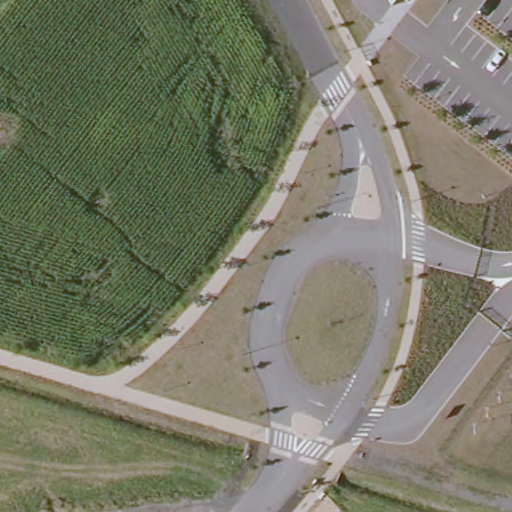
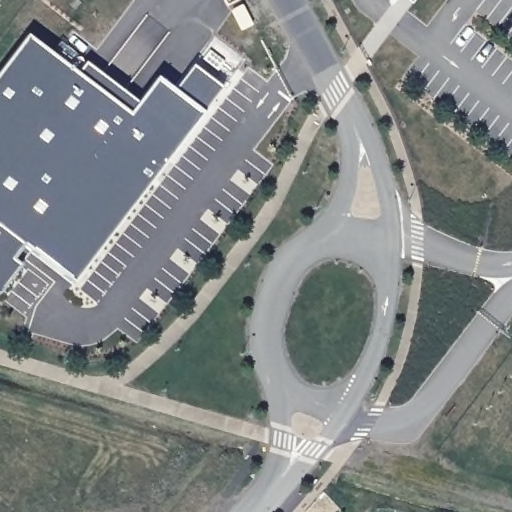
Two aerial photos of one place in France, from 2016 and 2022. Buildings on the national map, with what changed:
unchanged [(388,0),(391,0),(390,2),(388,0)]
unchanged [(406,0),(411,0),(410,2),(406,0)]
new [(0,227),(0,75),(27,38),(177,149),(73,285),(0,227)]
new [(0,301),(0,227),(27,249),(0,301)]

